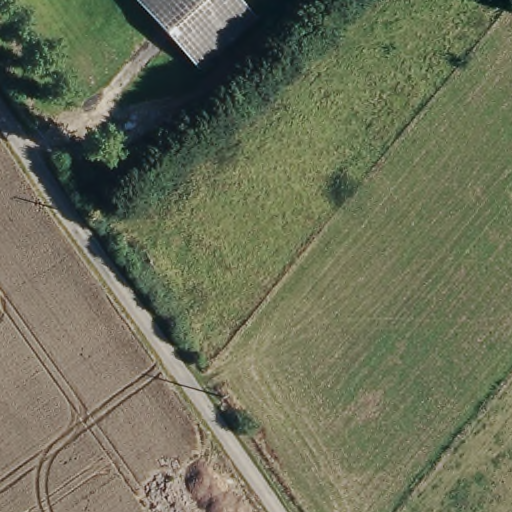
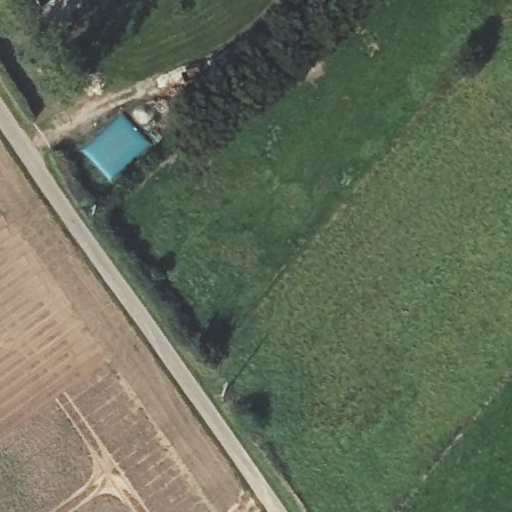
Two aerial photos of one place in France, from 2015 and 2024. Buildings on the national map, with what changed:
demolished [(143,0),(236,0),(255,21),(198,72),(137,6),(143,0)]

